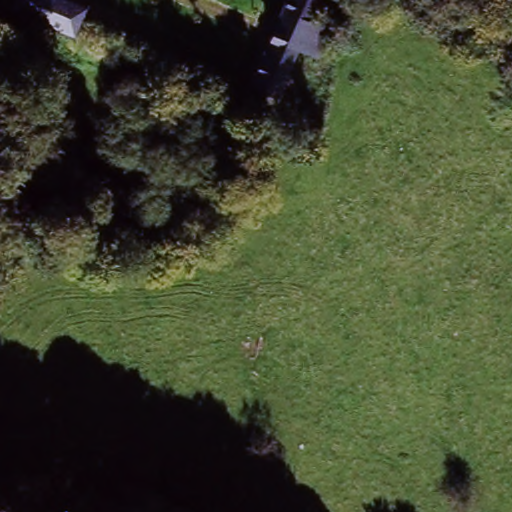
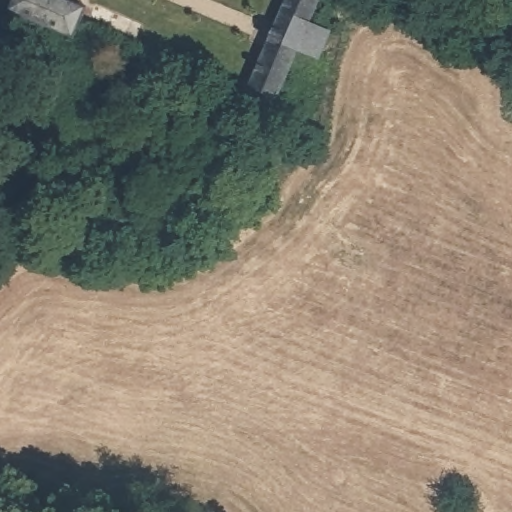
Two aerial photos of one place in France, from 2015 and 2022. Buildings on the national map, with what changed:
unchanged [(75,35),(41,20),(12,7),(14,0),(68,0),(85,7),(75,35)]
unchanged [(286,73),(276,101),(250,92),(285,0),(315,0),(305,25),(327,34),(318,59),(308,82),(286,73)]

